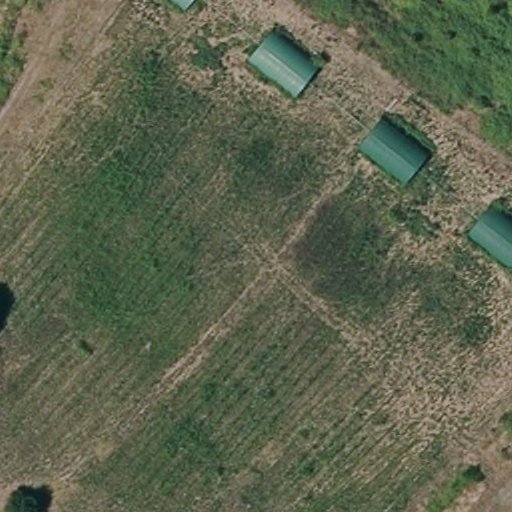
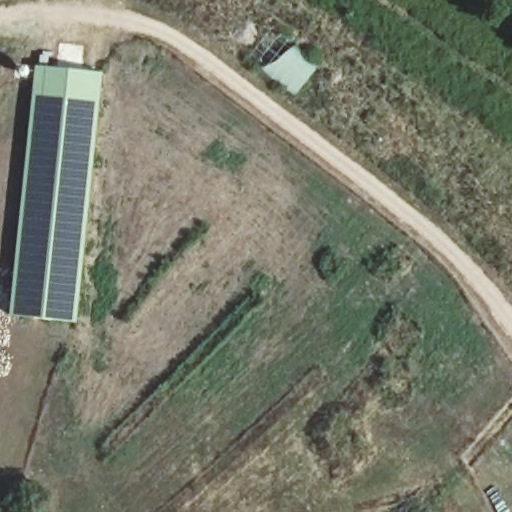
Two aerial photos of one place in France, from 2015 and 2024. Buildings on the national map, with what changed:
unchanged [(174,0),(186,0),(181,6),(174,0)]
unchanged [(249,59),(274,28),(316,63),(291,94),(249,59)]
new [(35,63),(70,67),(71,62),(56,60),(59,42),(83,45),(80,67),(103,70),(87,200),(76,323),(9,315),(35,63)]
unchanged [(357,146),(381,114),(425,147),(401,179),(357,146)]
unchanged [(494,199),(512,214),(512,264),(511,265),(469,230),(494,199)]

